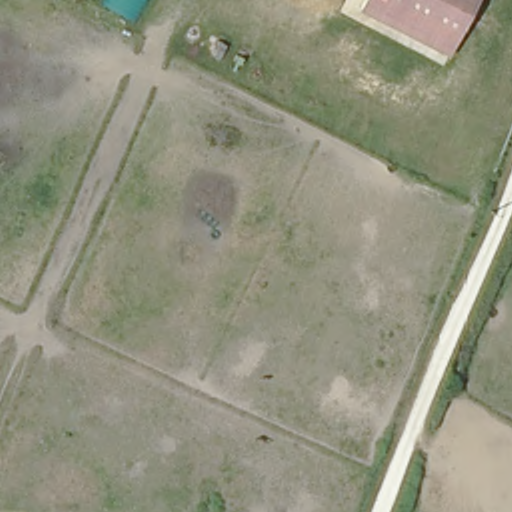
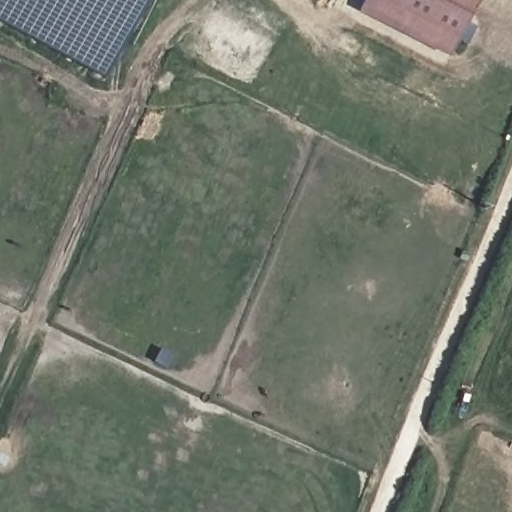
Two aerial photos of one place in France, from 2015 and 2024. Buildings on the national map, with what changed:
new [(0,18),(0,0),(139,0),(101,71),(0,18)]
unchanged [(480,0),(451,56),(361,10),(366,0),(480,0)]

